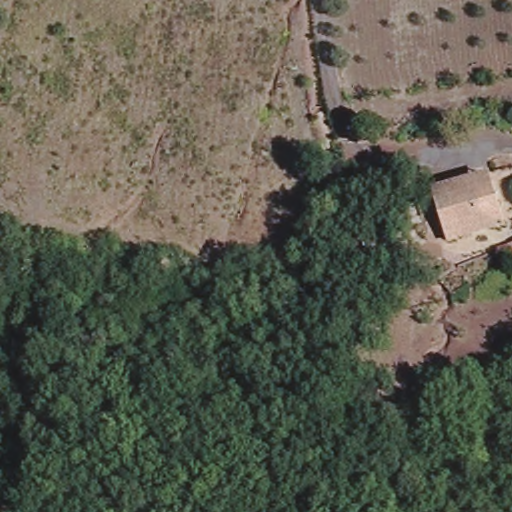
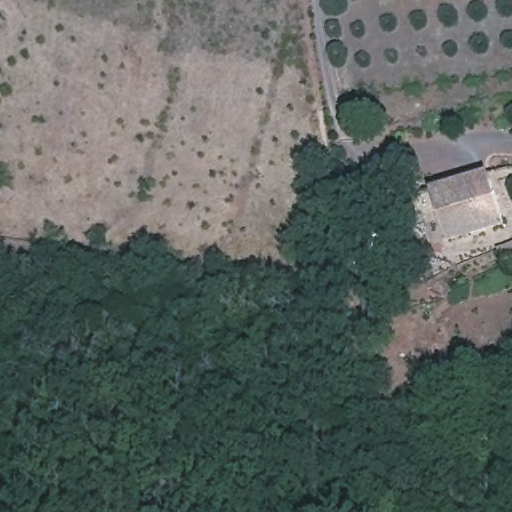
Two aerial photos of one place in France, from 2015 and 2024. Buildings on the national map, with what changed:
unchanged [(445,238),(430,196),(427,187),(486,170),(488,178),(501,221),(445,238)]
unchanged [(511,253),(512,253),(512,255),(511,253)]

